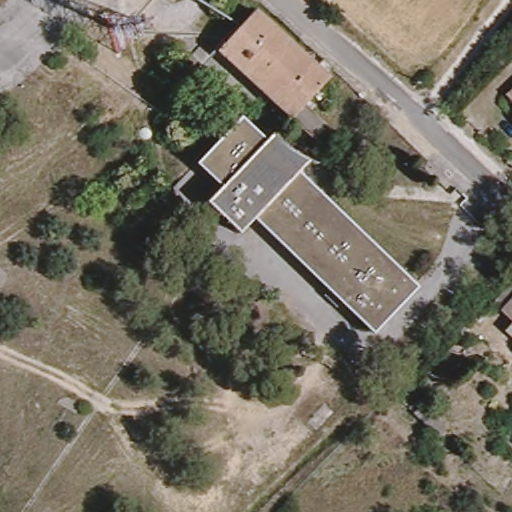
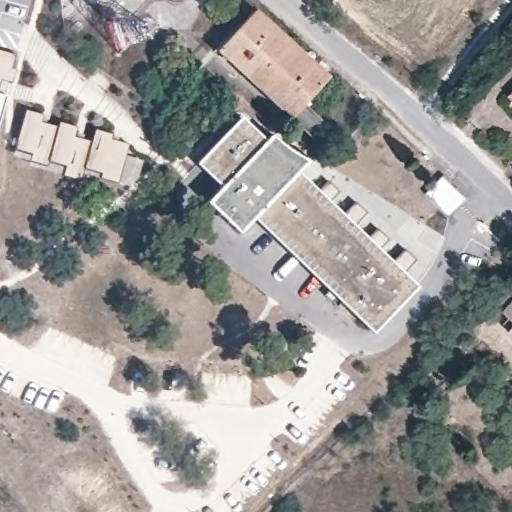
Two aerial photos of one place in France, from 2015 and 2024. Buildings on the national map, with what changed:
new [(0,16),(0,0),(29,0),(24,23),(0,16)]
unchanged [(309,136),(294,122),(216,48),(253,8),(326,77),(306,97),(313,102),(307,108),(321,123),(309,136)]
unchanged [(91,21),(99,15),(105,23),(98,29),(91,21)]
new [(9,64),(15,65),(13,79),(0,76),(0,49),(13,52),(9,64)]
new [(28,113),(44,116),(43,124),(57,127),(58,124),(61,125),(61,124),(73,126),(71,137),(86,140),(89,129),(106,132),(104,139),(121,142),(113,178),(96,175),(97,168),(83,165),(80,175),(63,172),(65,160),(51,157),(50,162),(34,158),(36,149),(21,146),(28,113)]
unchanged [(330,295),(337,288),(259,216),(243,234),(211,204),(226,186),(202,164),(238,123),(241,121),(266,144),(273,136),(276,139),(281,142),(285,145),(291,149),(296,151),(304,155),(308,158),(312,159),(299,174),(304,179),(406,273),(367,315),(349,299),(343,306),(330,295)]
unchanged [(419,285),(380,328),(367,315),(406,273),(419,285)]
unchanged [(501,300),(512,288),(512,311),(501,300)]

